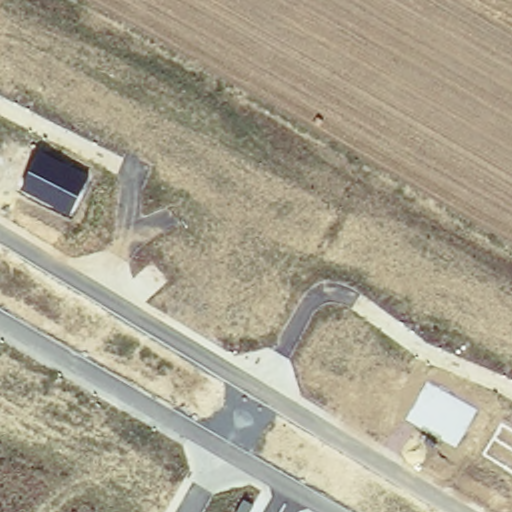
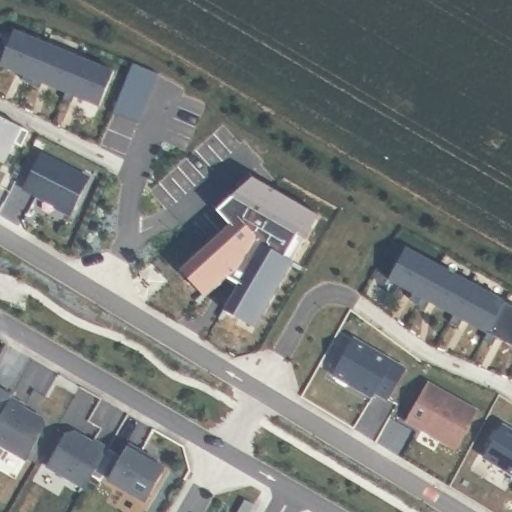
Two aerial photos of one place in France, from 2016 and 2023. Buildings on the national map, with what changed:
new [(46,44),(30,83),(21,79),(23,74),(0,65),(0,61),(12,30),(46,44)]
new [(46,44),(79,57),(65,91),(41,81),(39,88),(30,83),(46,44)]
new [(79,57),(111,70),(97,104),(72,94),(70,101),(61,98),(65,90),(79,57)]
new [(110,112),(117,95),(124,79),(131,62),(156,73),(150,89),(143,106),(136,122),(110,112)]
new [(13,142),(2,162),(0,161),(0,116),(27,130),(20,145),(13,142)]
unchanged [(70,215),(22,188),(39,151),(90,179),(70,215)]
new [(242,307),(237,315),(221,306),(236,279),(225,271),(207,289),(194,277),(200,270),(188,259),(226,220),(215,209),(254,173),(320,212),(261,319),(242,307)]
new [(406,296),(410,289),(385,275),(401,244),(435,262),(414,302),(406,296)]
new [(435,262),(467,280),(450,311),(426,298),(421,307),(414,302),(435,262)]
new [(467,280),(500,298),(484,329),(460,316),(455,324),(446,319),(451,311),(467,280)]
new [(500,298),(512,304),(512,344),(493,334),(489,342),(480,337),(483,329),(500,298)]
new [(403,365),(386,396),(373,389),(370,393),(330,371),(350,335),(403,365)]
new [(424,379),(475,408),(453,445),(437,436),(438,434),(420,424),(418,426),(403,417),(424,379)]
new [(0,412),(0,383),(12,390),(0,412)]
new [(25,402),(23,406),(43,417),(45,424),(26,457),(0,442),(0,412),(10,394),(25,402)]
new [(498,421),(512,429),(512,472),(480,452),(498,421)]
new [(45,462),(65,430),(71,428),(91,439),(92,437),(107,445),(85,485),(45,462)]
new [(141,449),(140,452),(164,466),(145,499),(107,477),(127,441),(141,449)]
new [(152,455),(150,458),(140,452),(141,449),(152,455)]
new [(252,501),(247,512),(235,512),(244,496),(252,501)]

